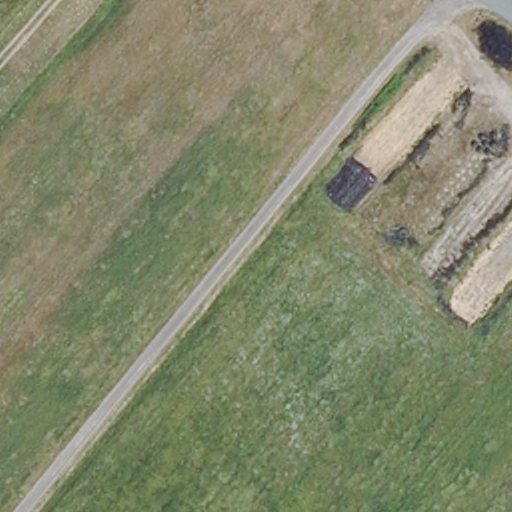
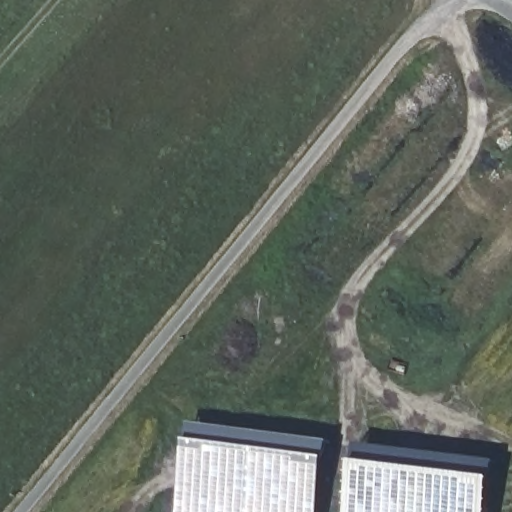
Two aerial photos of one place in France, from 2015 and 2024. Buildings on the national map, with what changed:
new [(195,426),(333,442),(325,512),(183,512),(195,426)]
new [(363,446),(496,463),(490,512),(355,512),(363,446)]

